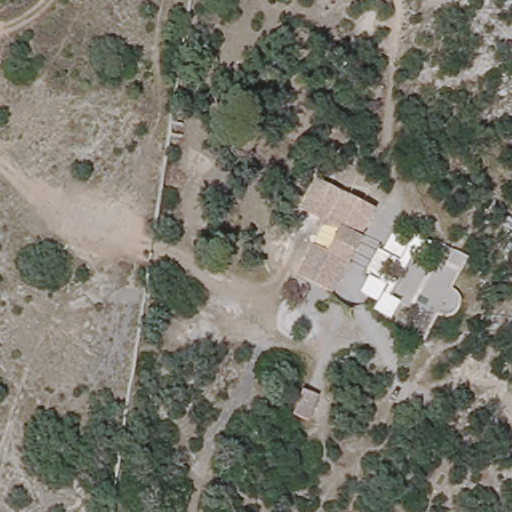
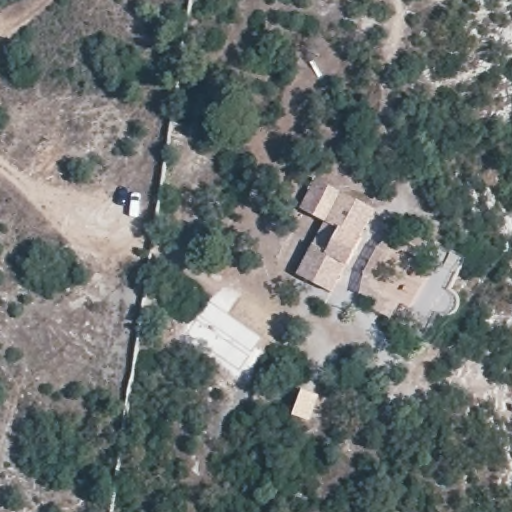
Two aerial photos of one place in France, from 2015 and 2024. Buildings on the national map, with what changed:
unchanged [(302,270),(327,219),(303,205),(317,177),(377,209),(335,289),(302,270)]
unchanged [(391,320),(373,311),(377,304),(359,294),(369,274),(365,272),(377,249),(383,252),(391,237),(407,244),(410,237),(422,243),(390,297),(400,303),(391,320)]
unchanged [(297,411),(307,386),(329,395),(320,419),(297,411)]

